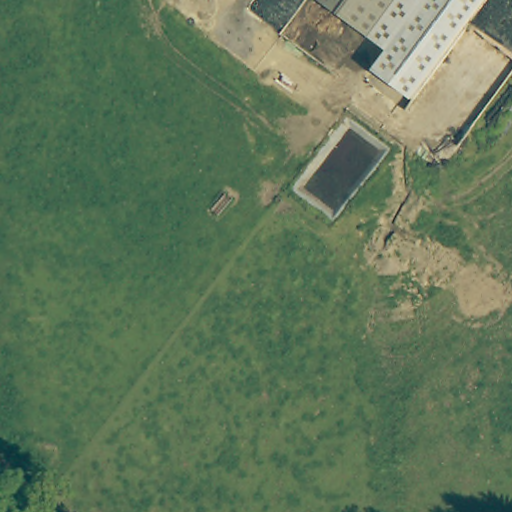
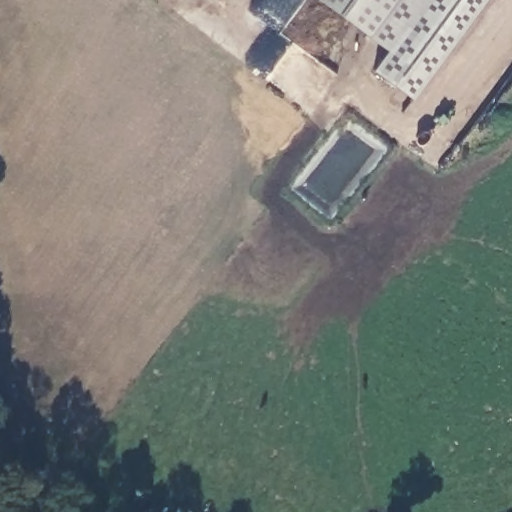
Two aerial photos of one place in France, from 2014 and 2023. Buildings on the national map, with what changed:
unchanged [(398,33),(425,0),(484,0),(411,100),(371,70),(385,49),(318,0),(357,0),(398,33)]
unchanged [(398,33),(357,0),(425,0),(398,33)]

